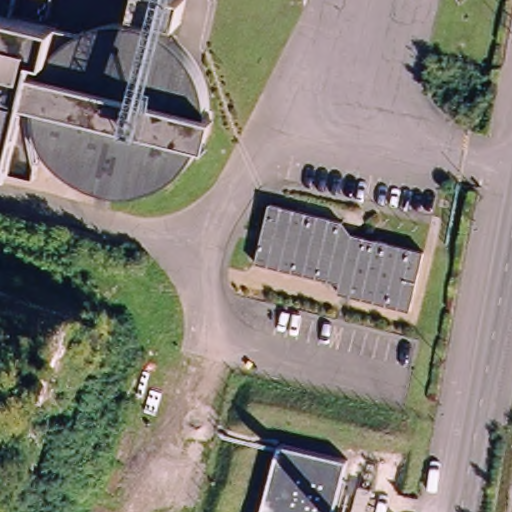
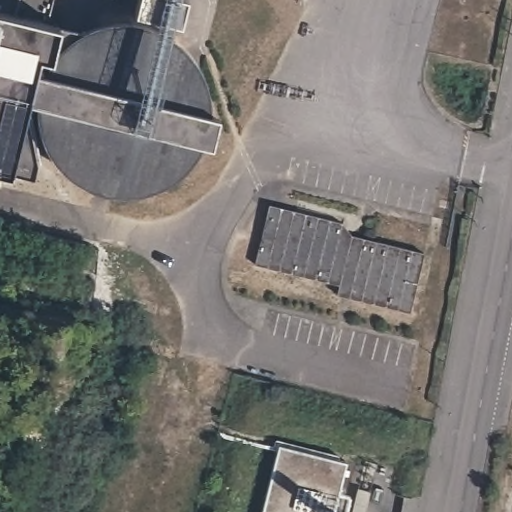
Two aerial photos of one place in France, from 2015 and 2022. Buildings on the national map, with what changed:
unchanged [(350,225),(347,238),(427,256),(408,322),(330,305),(336,287),(250,271),(265,205),(350,225)]
unchanged [(267,512),(280,449),(345,465),(335,512),(267,512)]

